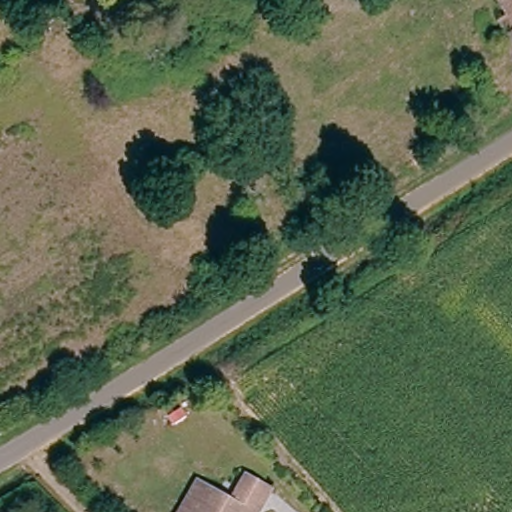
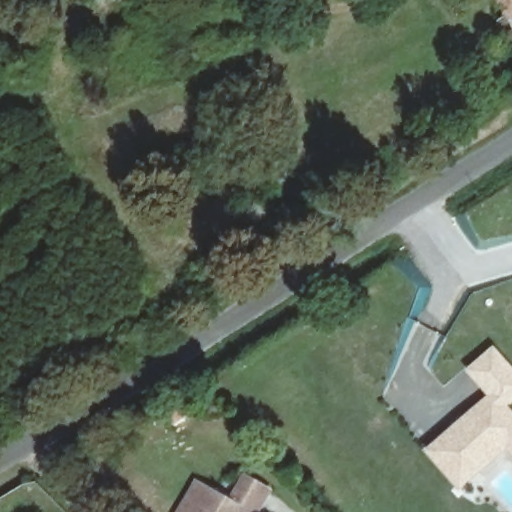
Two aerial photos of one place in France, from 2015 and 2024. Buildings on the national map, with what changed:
unchanged [(512,24),(498,0),(512,0),(512,24)]
new [(512,401),(507,405),(512,410),(512,454),(507,449),(460,490),(425,451),(487,395),(466,370),(493,345),(512,366),(512,401)]
unchanged [(229,500),(237,486),(243,475),(268,491),(262,503),(256,512),(177,512),(198,479),(229,500)]

